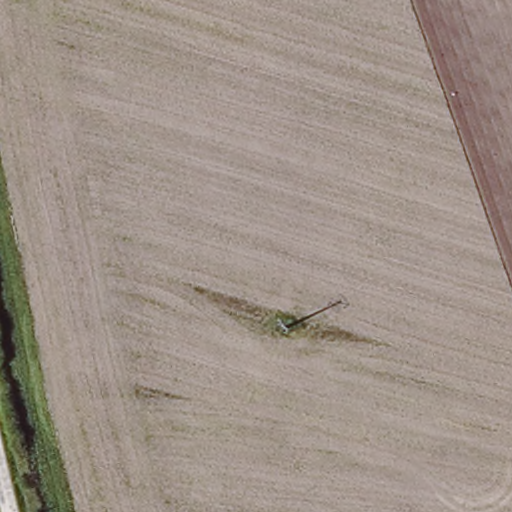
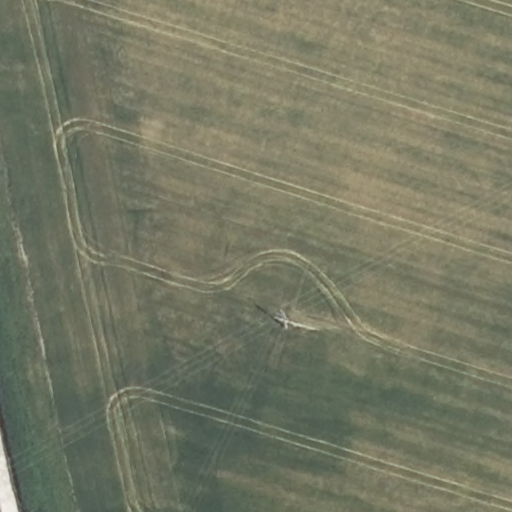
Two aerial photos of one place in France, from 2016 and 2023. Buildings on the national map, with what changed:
[]

